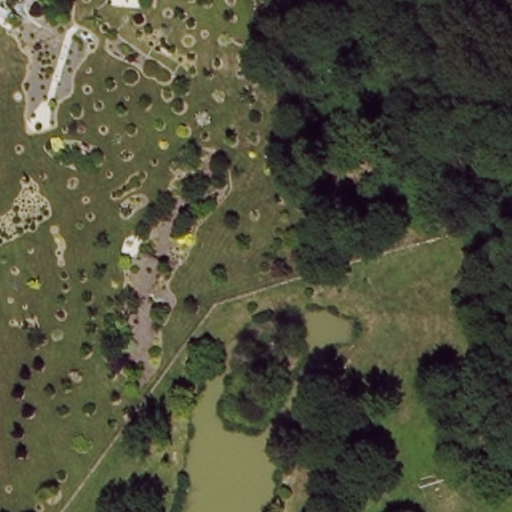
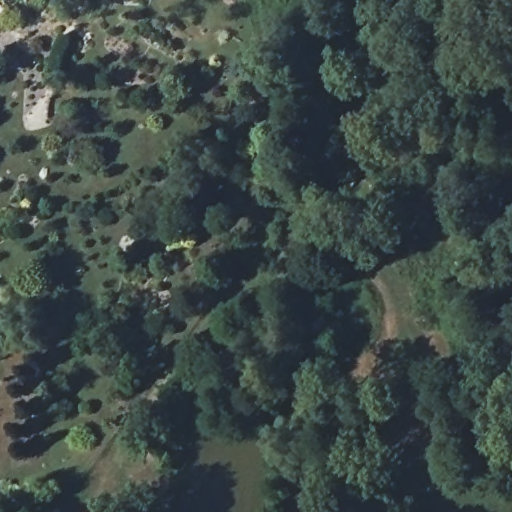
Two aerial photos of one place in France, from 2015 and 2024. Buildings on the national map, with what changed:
[]

